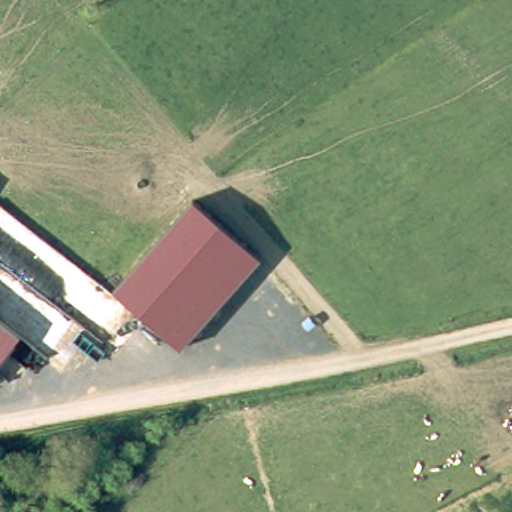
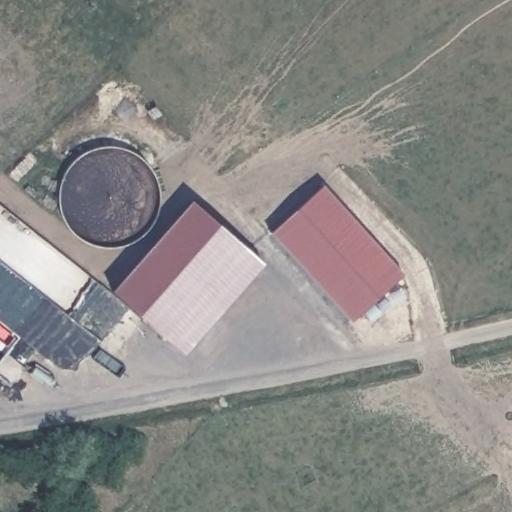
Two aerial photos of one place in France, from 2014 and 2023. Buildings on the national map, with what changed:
new [(317,183),(400,272),(349,320),(267,231),(317,183)]
unchanged [(119,302),(199,211),(250,256),(171,347),(119,302)]
unchanged [(0,325),(17,338),(0,359),(0,325)]

